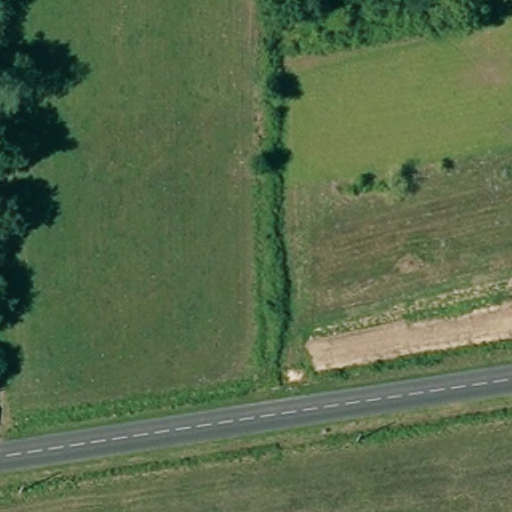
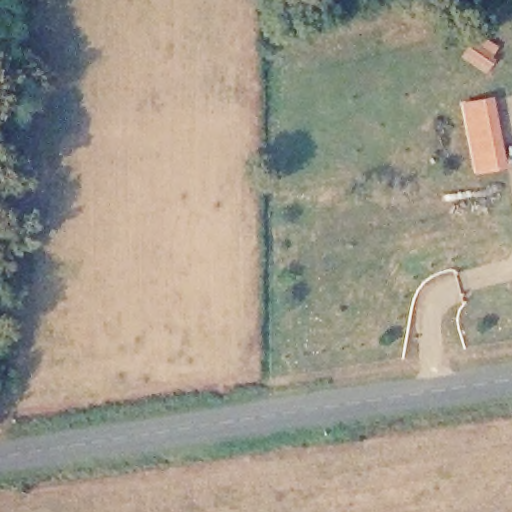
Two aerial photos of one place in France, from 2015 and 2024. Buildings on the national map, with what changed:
new [(474,174),(461,102),(492,95),(505,167),(474,174)]

